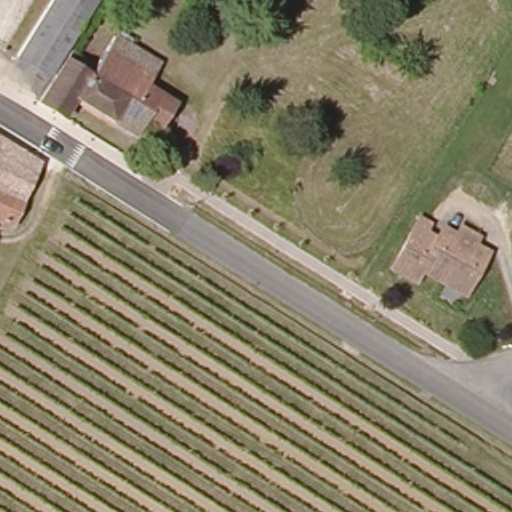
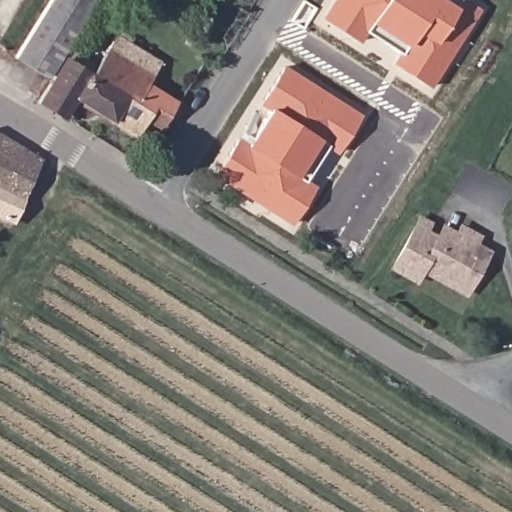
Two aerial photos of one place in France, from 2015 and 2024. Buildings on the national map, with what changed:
unchanged [(52,0),(95,0),(79,27),(47,9),(52,0)]
new [(432,88),(392,63),(400,54),(367,32),(361,42),(322,17),(332,0),(466,0),(482,8),(432,88)]
unchanged [(50,75),(19,56),(47,9),(79,27),(50,75)]
unchanged [(167,122),(155,115),(144,134),(77,96),(67,112),(59,107),(45,97),(71,56),(76,47),(100,61),(117,32),(122,35),(127,27),(140,35),(135,44),(165,61),(153,82),(181,98),(167,122)]
new [(283,65),(362,116),(337,155),(328,150),(307,180),(318,187),(292,224),(216,177),(240,137),(249,143),(270,111),(260,104),(283,65)]
unchanged [(42,159),(24,196),(21,195),(10,218),(0,214),(0,133),(42,159)]
unchanged [(420,266),(416,272),(413,277),(392,264),(395,260),(418,216),(428,221),(425,228),(438,235),(442,229),(445,224),(457,231),(462,224),(477,233),(473,239),(487,248),(484,253),(466,286),(463,291),(428,271),(420,266)]

